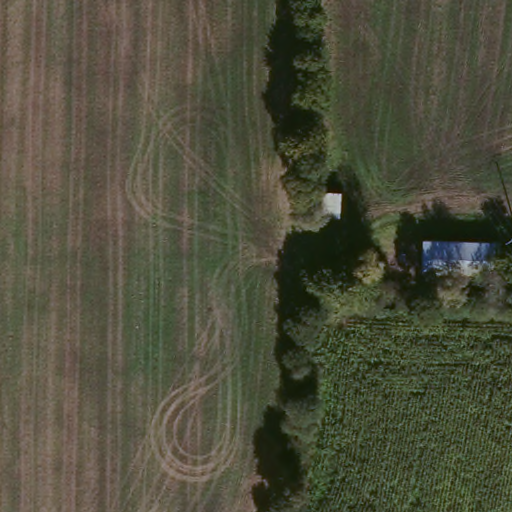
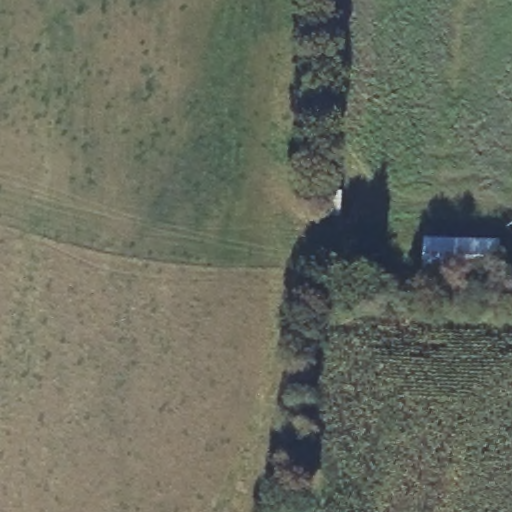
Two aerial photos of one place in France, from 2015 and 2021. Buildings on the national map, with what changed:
unchanged [(427,228),(503,238),(497,279),(422,266),(427,228)]

